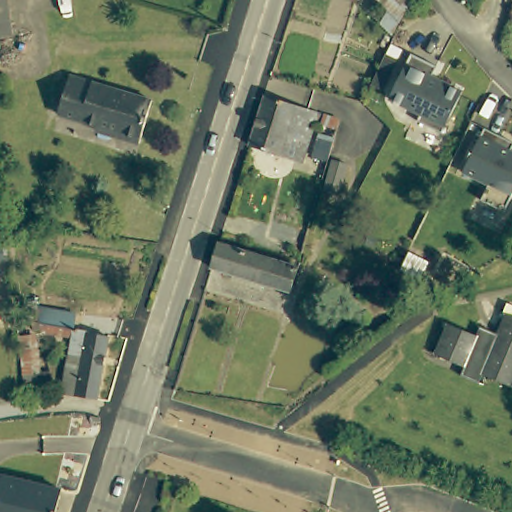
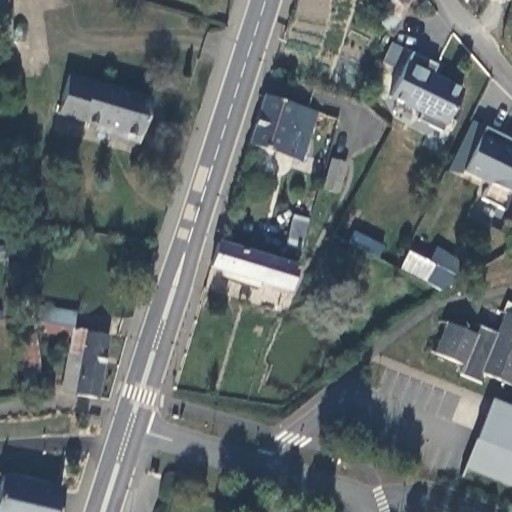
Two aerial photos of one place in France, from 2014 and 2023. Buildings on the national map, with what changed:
unchanged [(0,30),(0,0),(8,0),(13,29),(0,30)]
unchanged [(412,0),(390,33),(361,6),(364,0),(412,0)]
unchanged [(434,62),(427,77),(432,80),(434,75),(460,88),(440,130),(415,117),(418,110),(387,95),(408,49),(434,62)]
unchanged [(70,72),(149,102),(136,141),(115,134),(116,129),(58,106),(68,78),(70,72)]
unchanged [(298,109),(344,124),(340,139),(314,131),(301,165),(247,149),(264,98),(298,109)]
unchanged [(479,195),(486,180),(460,166),(482,123),(499,131),(512,138),(512,140),(509,146),(512,148),(512,189),(503,207),(479,195)]
unchanged [(351,162),(343,188),(325,182),(333,156),(351,162)]
unchanged [(297,265),(289,290),(208,265),(216,240),(297,265)]
unchanged [(430,277),(403,263),(413,246),(439,260),(430,277)]
unchanged [(96,395),(65,390),(72,341),(40,335),(45,307),(77,315),(74,330),(107,335),(96,395)]
unchanged [(479,332),(497,337),(506,315),(512,317),(512,381),(511,384),(483,375),(480,385),(459,377),(463,368),(436,359),(447,332),(475,340),(479,332)]
new [(512,489),(462,470),(490,399),(512,408),(512,489)]
unchanged [(55,486),(50,512),(0,512),(0,478),(0,475),(55,486)]

